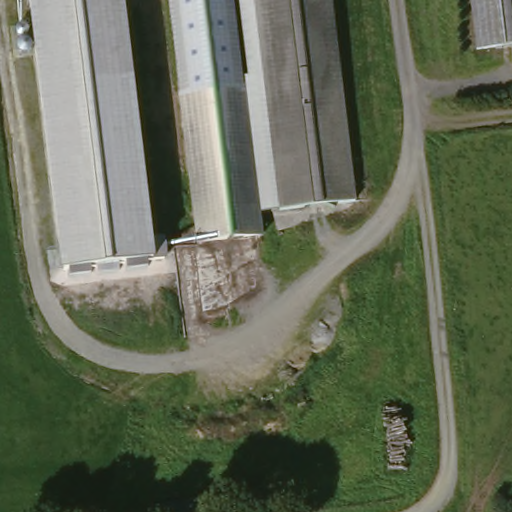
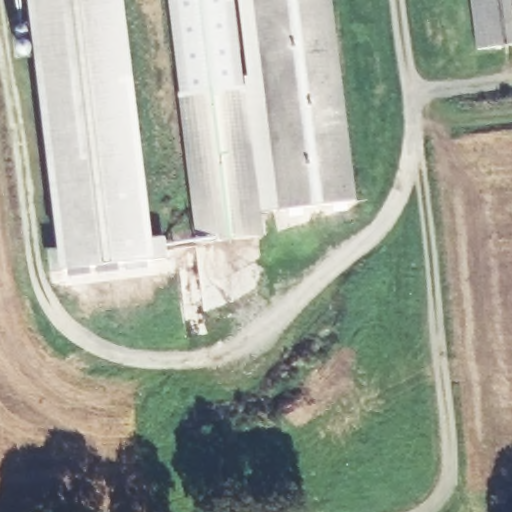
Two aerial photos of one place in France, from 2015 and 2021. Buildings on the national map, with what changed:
unchanged [(25,0),(122,0),(152,263),(56,271),(25,0)]
unchanged [(170,0),(231,0),(240,78),(242,78),(244,93),(184,99),(170,0)]
unchanged [(279,208),(258,211),(244,93),(235,0),(256,0),(279,208)]
unchanged [(279,208),(256,0),(328,0),(350,203),(279,208)]
unchanged [(512,50),(471,54),(465,0),(512,0),(512,50)]
unchanged [(258,211),(261,244),(202,249),(184,99),(244,93),(258,211)]

